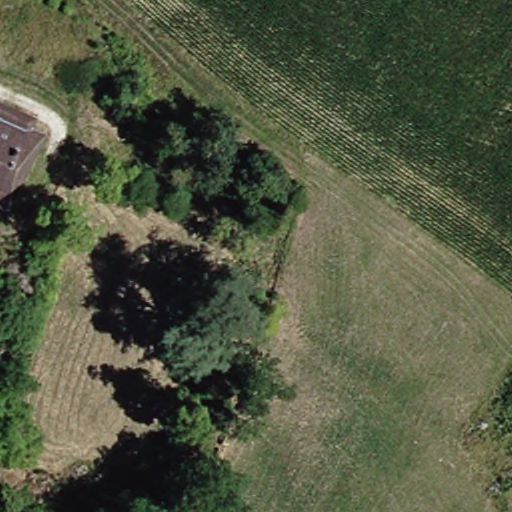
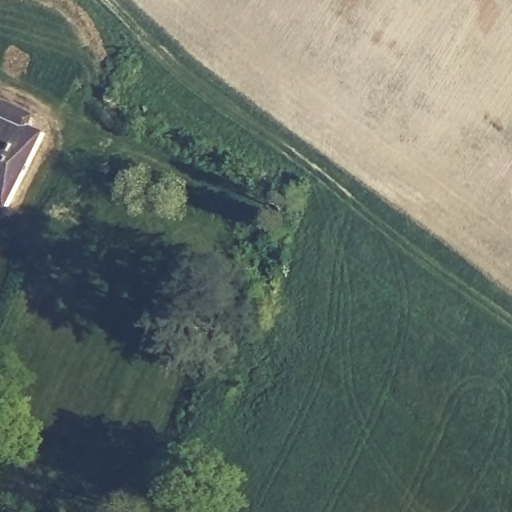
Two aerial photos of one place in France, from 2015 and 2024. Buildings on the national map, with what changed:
unchanged [(0,204),(0,104),(35,121),(31,129),(49,136),(14,210),(0,204)]

